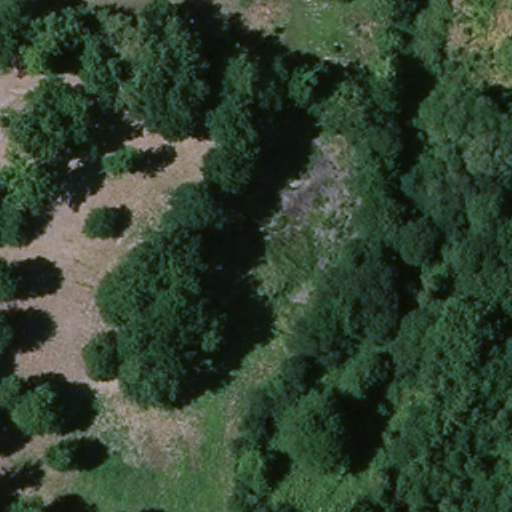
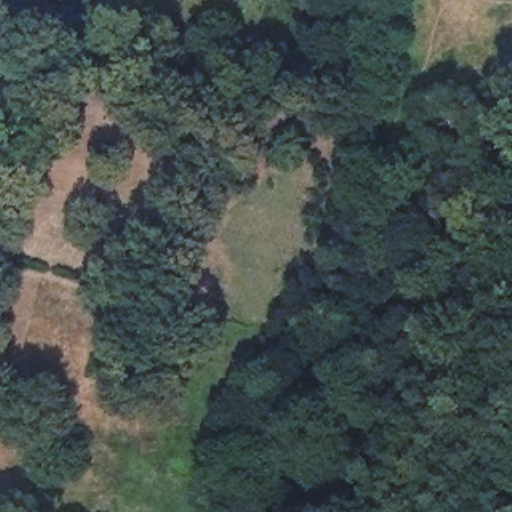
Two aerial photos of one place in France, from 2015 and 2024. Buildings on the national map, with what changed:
unchanged [(62,2),(52,0),(62,0),(62,2)]

